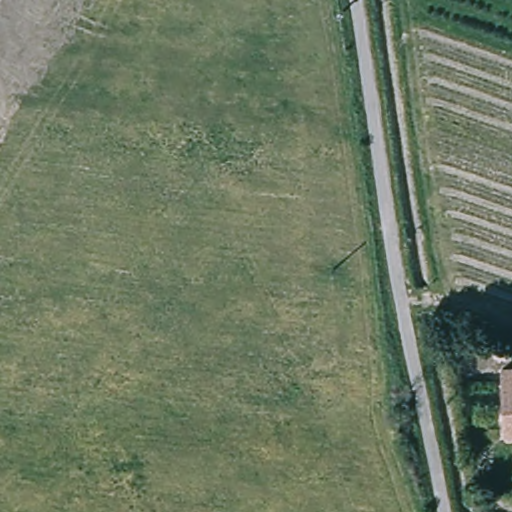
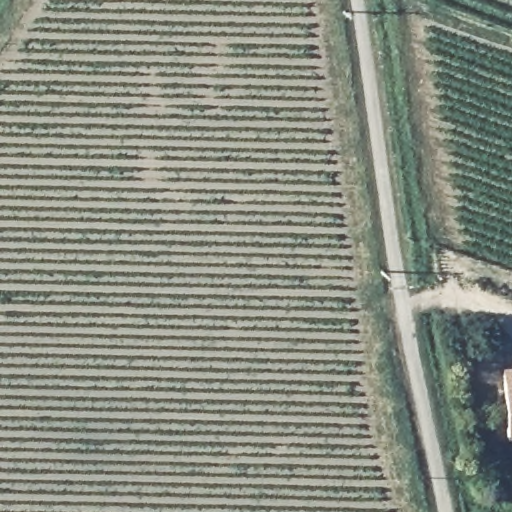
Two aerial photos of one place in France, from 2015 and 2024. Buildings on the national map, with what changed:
unchanged [(508,429),(506,360),(512,360),(512,429),(508,429)]

